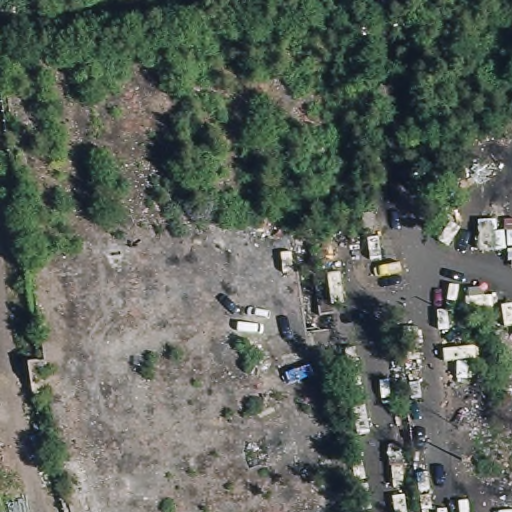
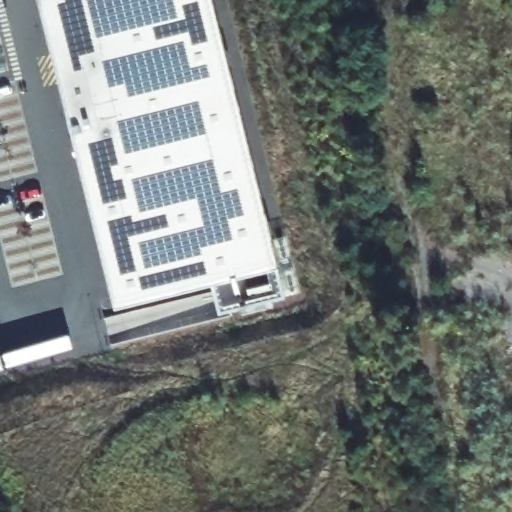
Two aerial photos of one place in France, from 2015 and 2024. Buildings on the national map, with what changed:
new [(287,299),(219,316),(212,286),(116,311),(38,0),(214,0),(281,268),(287,299)]

